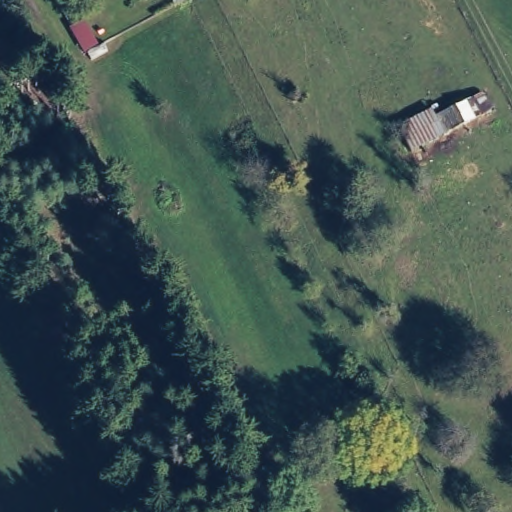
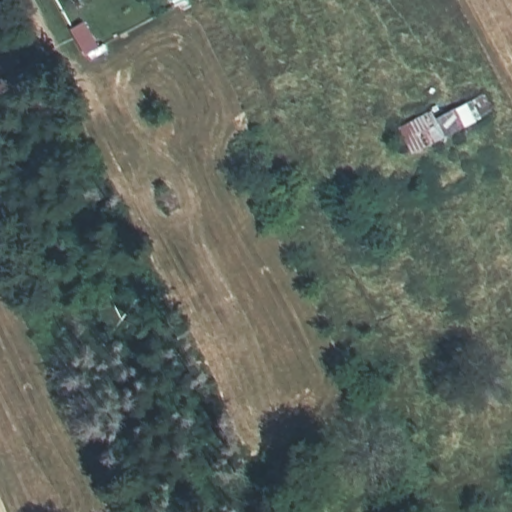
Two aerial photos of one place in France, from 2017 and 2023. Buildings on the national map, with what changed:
unchanged [(15,61),(0,69),(0,44),(5,42),(15,61)]
unchanged [(407,160),(393,134),(427,117),(432,125),(478,100),(489,116),(407,160)]
unchanged [(244,162),(231,140),(245,131),(258,155),(244,162)]

